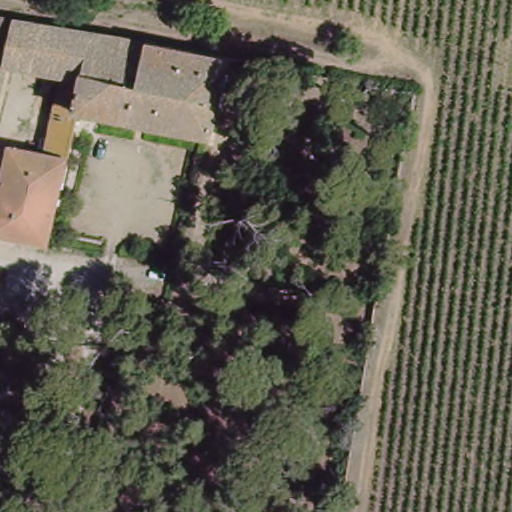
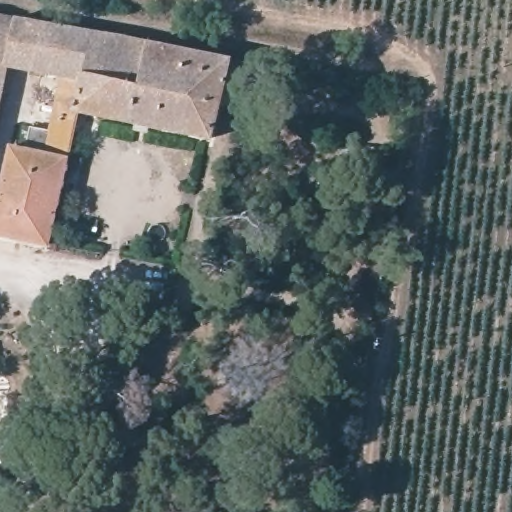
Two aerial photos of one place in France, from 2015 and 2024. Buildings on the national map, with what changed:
unchanged [(0,16),(98,34),(227,58),(212,138),(80,114),(70,161),(50,248),(0,237),(0,191),(10,148),(46,154),(62,80),(8,68),(0,104),(0,16)]

